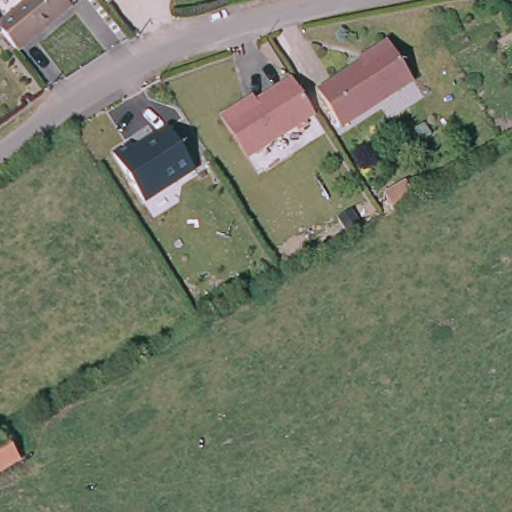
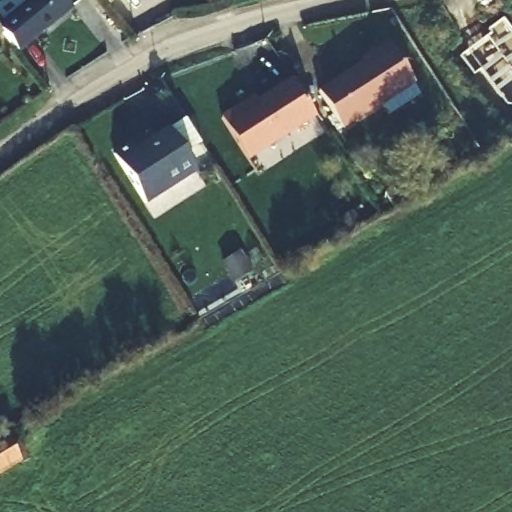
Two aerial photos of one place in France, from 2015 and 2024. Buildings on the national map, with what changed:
unchanged [(72,7),(18,52),(2,32),(0,30),(0,25),(30,0),(81,0),(72,7)]
unchanged [(108,5),(105,0),(114,0),(108,5)]
new [(474,74),(460,56),(489,34),(487,30),(503,19),(512,31),(512,105),(507,104),(481,69),(474,74)]
unchanged [(0,34),(0,30),(2,32),(0,34)]
unchanged [(368,52),(388,40),(414,80),(344,124),(321,88),(371,57),(368,52)]
unchanged [(246,100),(248,104),(292,79),(314,114),(248,154),(223,114),(246,100)]
unchanged [(113,161),(169,126),(198,171),(143,205),(113,161)]
unchanged [(422,175),(432,191),(399,211),(389,194),(422,175)]
unchanged [(4,438),(18,464),(0,474),(0,440),(4,438)]

